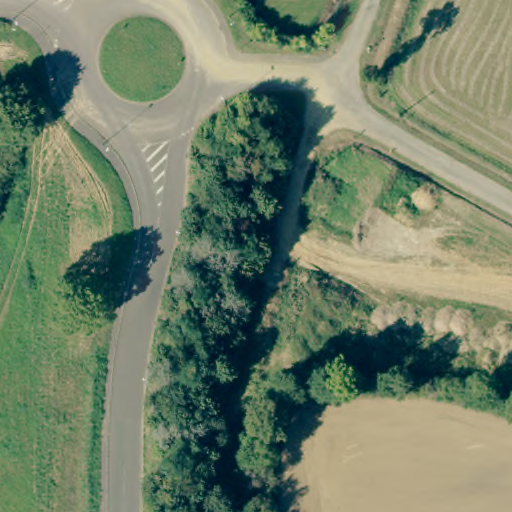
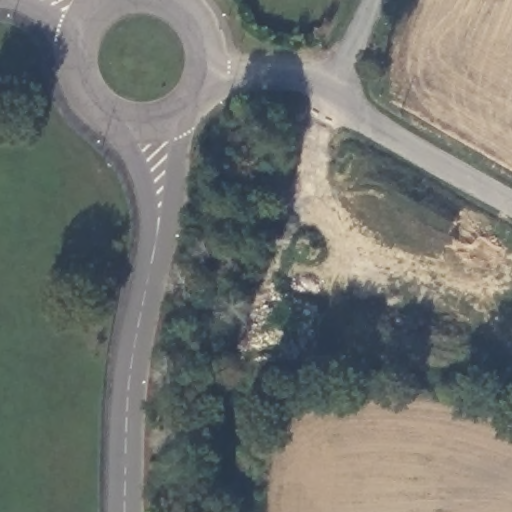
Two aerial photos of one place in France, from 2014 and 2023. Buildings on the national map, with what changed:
[]

